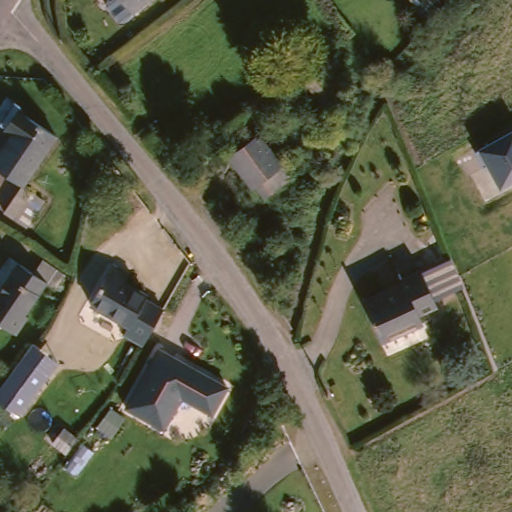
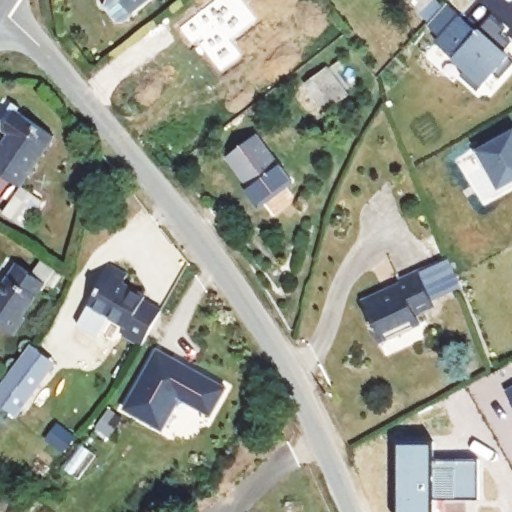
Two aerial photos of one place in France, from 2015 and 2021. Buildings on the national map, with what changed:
unchanged [(108,0),(140,0),(119,15),(108,0)]
unchanged [(425,0),(425,1),(411,16),(399,0),(425,0)]
new [(481,28),(490,16),(505,30),(501,34),(512,45),(512,48),(507,56),(512,60),(512,66),(501,78),(494,71),(482,85),(478,91),(461,76),(466,71),(453,58),(435,41),(457,16),(476,33),(481,28)]
unchanged [(315,68),(333,94),(313,110),(295,84),(315,68)]
unchanged [(10,126),(0,120),(16,103),(51,133),(15,175),(0,162),(0,138),(10,126)]
unchanged [(477,151),(512,132),(512,183),(500,190),(477,151)]
unchanged [(260,139),(287,179),(261,198),(255,190),(250,193),(228,160),(260,139)]
unchanged [(17,214),(0,200),(0,194),(15,175),(36,192),(17,214)]
unchanged [(381,289),(397,283),(395,274),(416,266),(445,255),(450,270),(455,283),(427,294),(431,304),(408,314),(410,317),(373,332),(358,291),(379,283),(381,289)]
unchanged [(15,269),(20,271),(30,260),(47,274),(38,285),(40,288),(15,317),(20,321),(5,337),(0,333),(0,289),(15,269)]
unchanged [(130,335),(134,326),(94,307),(113,266),(130,274),(126,283),(150,295),(148,298),(167,307),(150,344),(130,335)]
unchanged [(0,406),(0,381),(18,357),(27,345),(51,363),(42,375),(12,415),(0,406)]
unchanged [(222,379),(209,408),(177,393),(162,425),(122,407),(151,345),(222,379)]
new [(512,389),(512,403),(506,393),(512,389)]
new [(397,444),(432,445),(432,462),(447,462),(447,502),(432,502),(432,512),(396,512),(397,444)]

